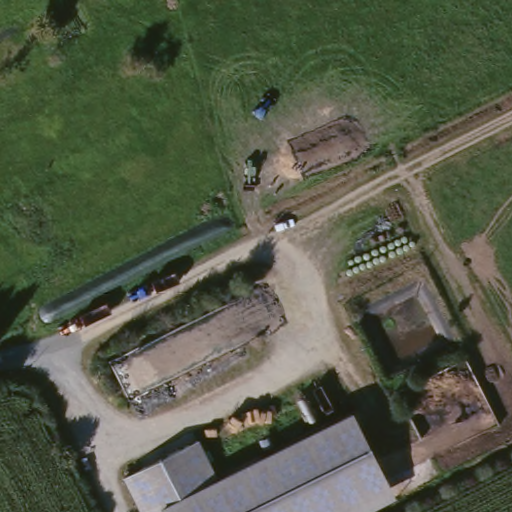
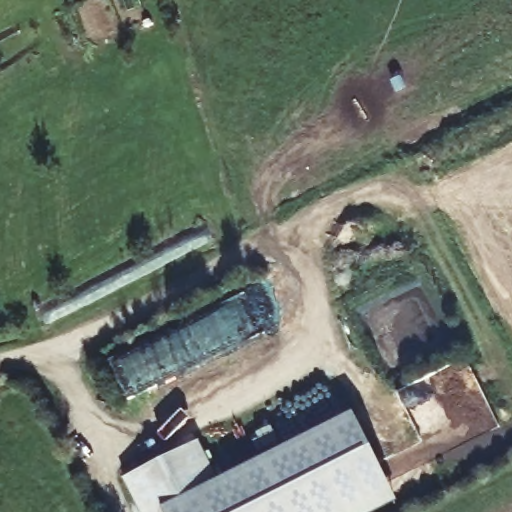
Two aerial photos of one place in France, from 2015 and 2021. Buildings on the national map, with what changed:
unchanged [(352,410),(397,495),(366,512),(183,512),(225,490),(220,480),(352,410)]
unchanged [(126,478),(199,440),(220,480),(225,490),(183,512),(144,512),(126,478)]

